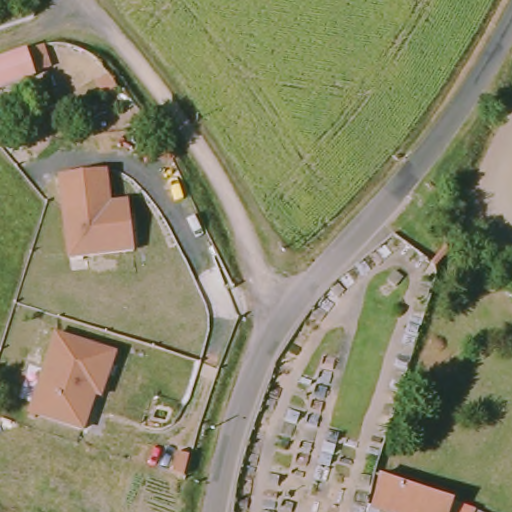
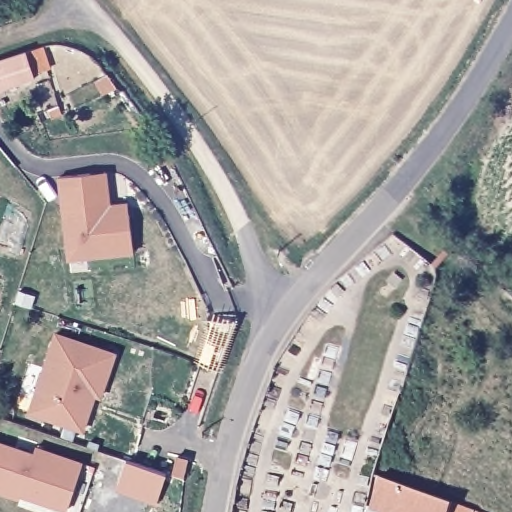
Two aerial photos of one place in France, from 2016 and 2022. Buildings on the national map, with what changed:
unchanged [(32,74),(32,77),(0,87),(0,62),(22,56),(22,58),(40,51),(46,70),(32,74)]
unchanged [(69,265),(60,200),(58,183),(89,179),(104,177),(105,186),(108,211),(127,209),(128,220),(133,257),(69,265)]
unchanged [(95,399),(90,413),(83,434),(30,416),(57,338),(116,358),(105,390),(101,401),(95,399)]
new [(20,501),(0,494),(0,442),(34,453),(37,447),(83,461),(67,511),(21,496),(20,501)]
new [(126,460),(165,471),(156,503),(117,490),(126,460)]
unchanged [(470,512),(363,512),(364,508),(367,509),(375,478),(470,512)]

